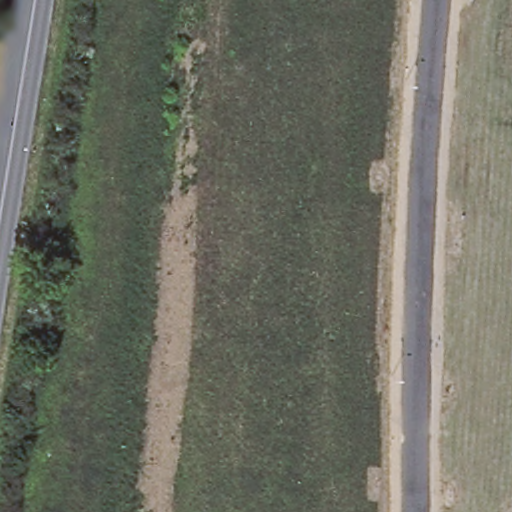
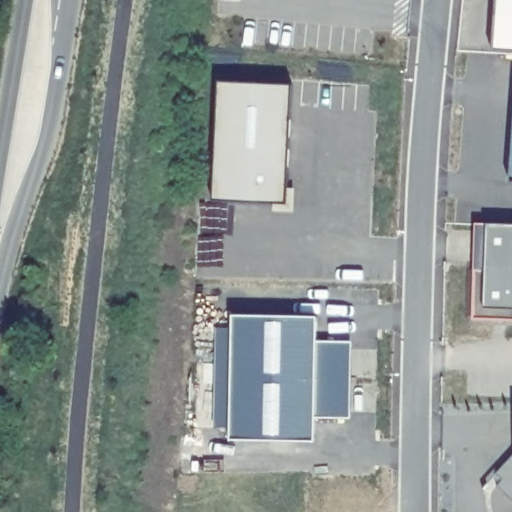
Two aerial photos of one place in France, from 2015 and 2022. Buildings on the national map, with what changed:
new [(492,50),(495,0),(512,0),(512,52),(492,50)]
new [(220,85),(294,88),(289,208),(214,205),(220,85)]
unchanged [(512,157),(512,182),(510,182),(512,157)]
unchanged [(474,323),(475,271),(477,226),(489,227),(512,227),(512,324),(474,323)]
new [(232,431),(233,331),(233,318),(319,320),(318,344),(346,345),(346,352),(353,352),(352,415),(345,415),(345,422),(317,421),(316,445),(232,444),(232,431)]
new [(218,331),(233,331),(232,431),(217,431),(218,331)]
new [(512,459),(512,498),(500,486),(504,482),(497,475),(512,459)]

